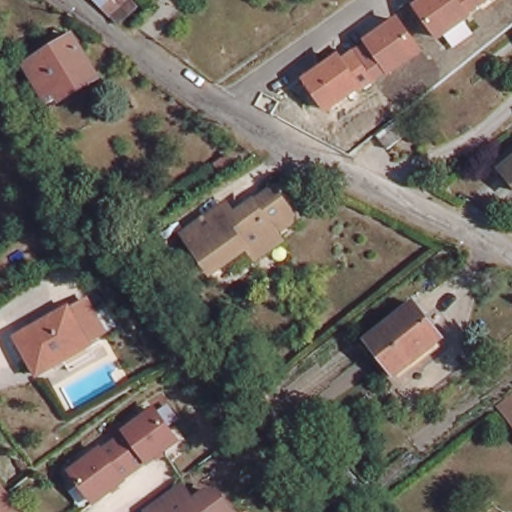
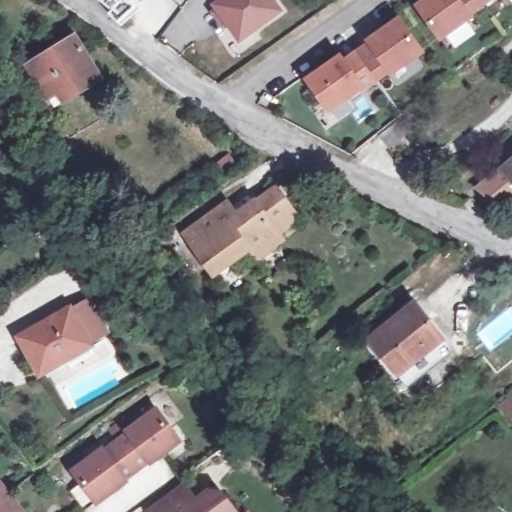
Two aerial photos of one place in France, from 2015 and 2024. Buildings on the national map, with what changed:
unchanged [(85,0),(123,0),(105,18),(85,0)]
new [(239,44),(228,27),(223,30),(209,12),(213,9),(209,4),(214,0),(276,0),(284,11),(239,44)]
unchanged [(413,5),(420,0),(496,0),(440,42),(413,5)]
unchanged [(329,116),(303,81),(340,55),(344,60),(365,44),(364,41),(397,16),(423,54),(329,116)]
unchanged [(37,95),(43,91),(26,65),(73,35),(100,77),(80,89),(47,110),(37,95)]
unchanged [(410,130),(389,147),(379,135),(400,118),(410,130)]
unchanged [(512,157),(512,185),(499,169),(512,157)]
unchanged [(232,257),(213,271),(184,231),(221,204),(227,199),(237,214),(275,186),(296,215),(276,230),(281,237),(254,257),(240,268),(232,257)]
unchanged [(70,370),(64,359),(38,374),(16,335),(67,306),(71,313),(90,303),(106,331),(87,342),(95,355),(70,370)]
unchanged [(391,368),(369,339),(414,303),(442,338),(408,363),(395,373),(391,368)]
unchanged [(512,395),(512,420),(500,405),(512,395)]
unchanged [(128,430),(127,428),(155,406),(178,437),(150,458),(148,456),(136,466),(116,440),(128,430)]
unchanged [(123,475),(124,477),(96,498),(73,468),(101,447),(103,449),(116,440),(136,466),(123,475)]
unchanged [(12,486),(33,512),(0,512),(0,472),(12,486)]
unchanged [(180,480),(188,491),(196,492),(206,485),(217,487),(234,512),(151,512),(146,505),(180,480)]

